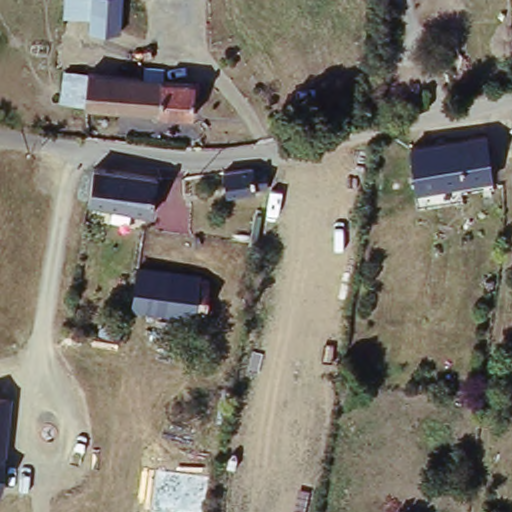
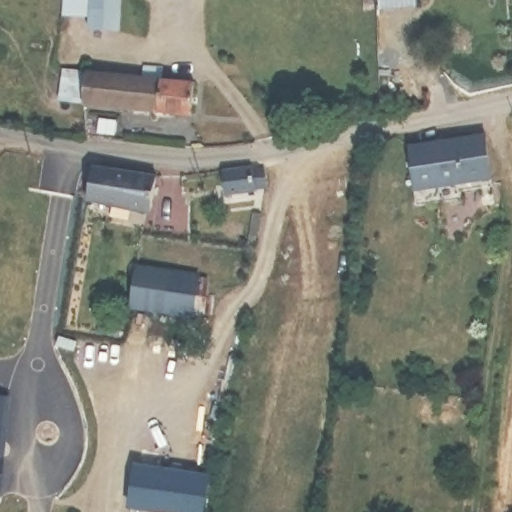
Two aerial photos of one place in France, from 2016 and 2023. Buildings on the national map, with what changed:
unchanged [(58,0),(91,0),(91,28),(58,32),(58,0)]
unchanged [(120,0),(126,0),(124,39),(91,37),(91,28),(91,0),(120,0)]
new [(380,10),(379,0),(417,0),(417,7),(380,10)]
unchanged [(52,104),(56,66),(77,67),(145,72),(145,61),(160,62),(160,74),(188,75),(186,114),(76,105),(52,104)]
unchanged [(407,147),(458,130),(487,121),(499,163),(469,173),(474,190),(447,200),(425,206),(419,189),(407,147)]
unchanged [(238,187),(242,165),(270,165),(270,186),(238,187)]
unchanged [(152,215),(84,205),(90,168),(160,175),(152,215)]
unchanged [(212,278),(206,315),(134,310),(138,273),(212,278)]
unchanged [(1,493),(0,493),(0,396),(12,397),(1,493)]
new [(138,464),(211,476),(205,512),(169,512),(131,506),(138,464)]

